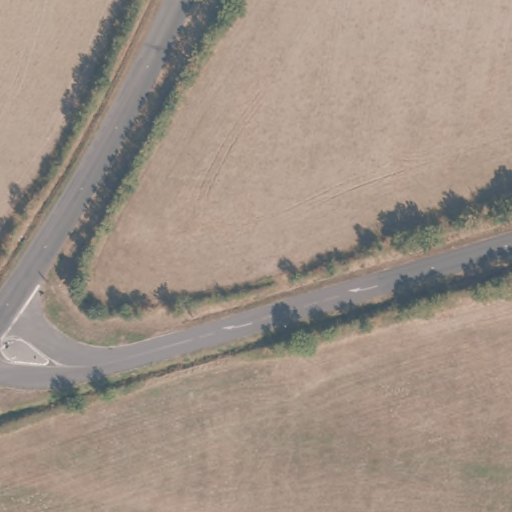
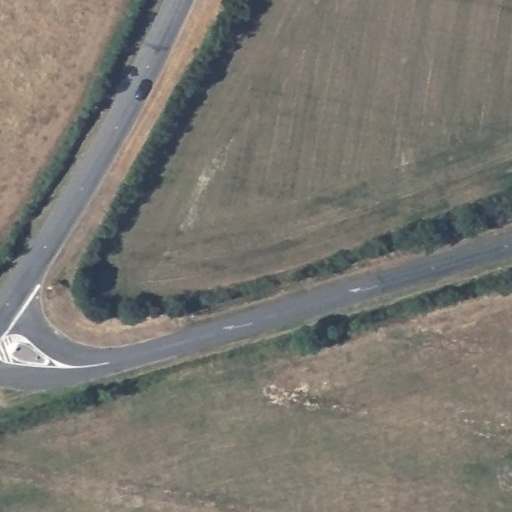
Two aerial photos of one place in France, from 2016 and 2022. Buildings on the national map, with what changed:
[]

